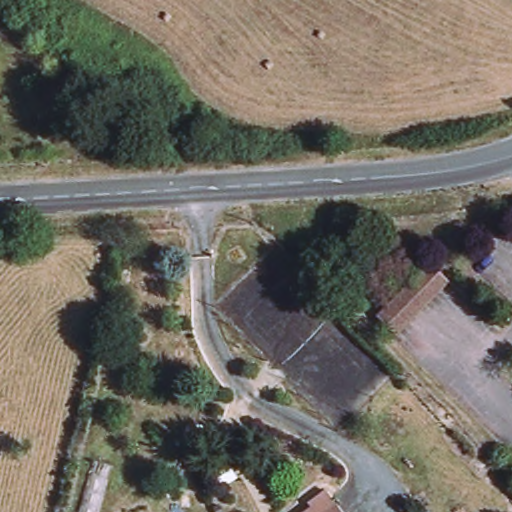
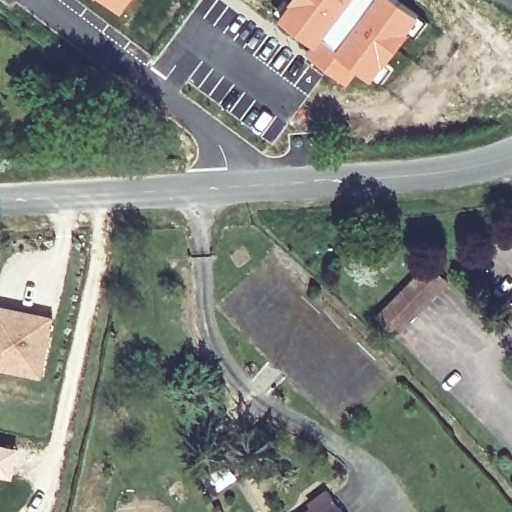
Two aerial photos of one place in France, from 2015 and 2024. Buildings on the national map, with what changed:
new [(100,0),(132,0),(120,17),(100,0)]
new [(353,0),(314,47),(313,46),(280,18),(293,0),(353,0)]
new [(314,47),(353,0),(398,0),(426,22),(412,36),(373,82),(358,72),(345,87),(305,55),(313,46),(314,47)]
unchanged [(430,264),(448,282),(397,334),(378,317),(430,264)]
new [(0,370),(0,305),(54,317),(43,380),(0,370)]
new [(12,481),(0,477),(0,443),(20,447),(12,481)]
unchanged [(233,477),(220,487),(211,475),(225,465),(233,477)]
unchanged [(315,508),(310,502),(327,491),(338,507),(340,507),(343,512),(317,512),(315,508)]
unchanged [(315,508),(317,512),(310,512),(315,508)]

